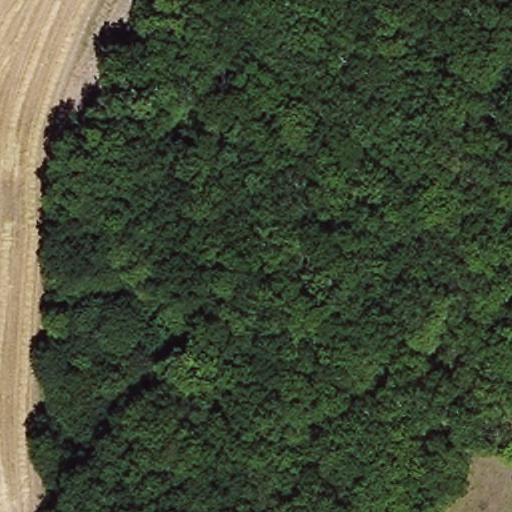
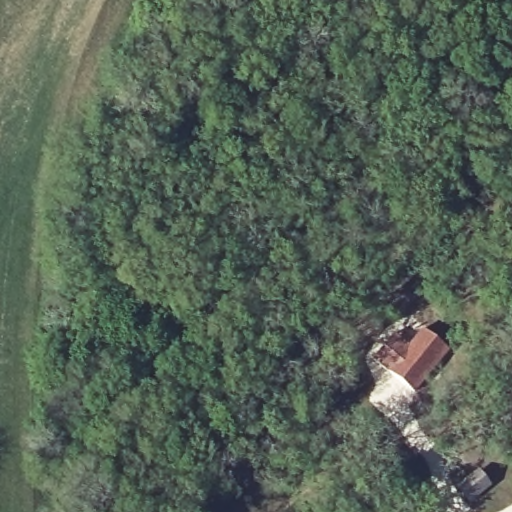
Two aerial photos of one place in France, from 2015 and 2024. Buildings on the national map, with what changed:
new [(422,328),(450,349),(415,392),(372,361),(395,333),(408,344),(422,328)]

